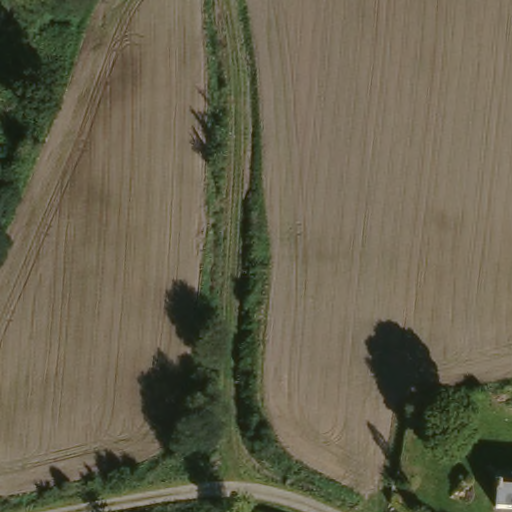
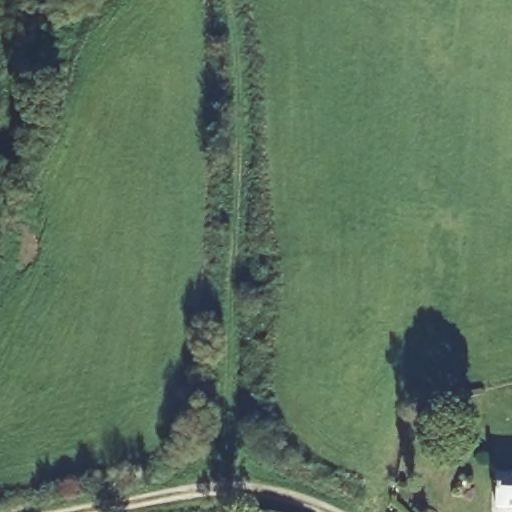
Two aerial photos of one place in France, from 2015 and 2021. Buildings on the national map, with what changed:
unchanged [(512,511),(494,511),(493,480),(512,480),(512,511)]

